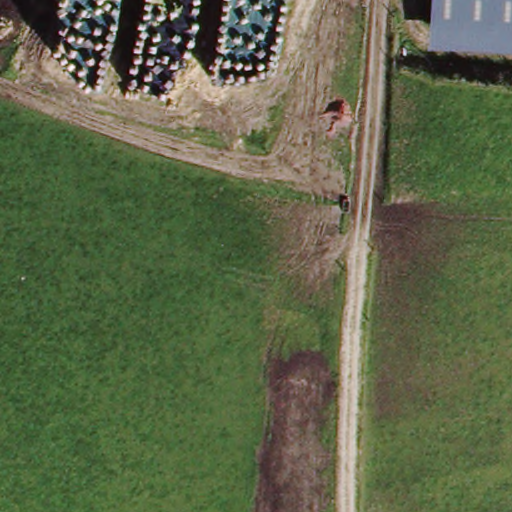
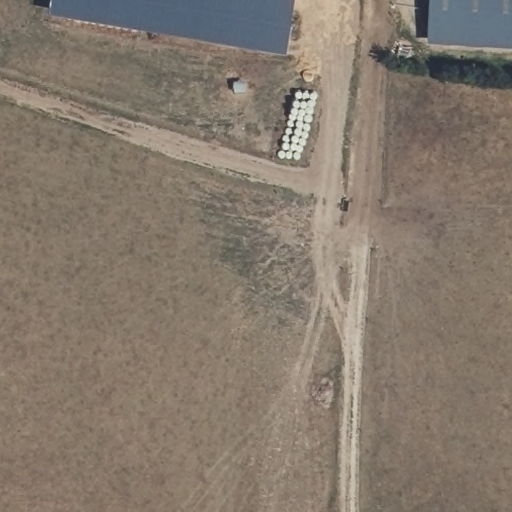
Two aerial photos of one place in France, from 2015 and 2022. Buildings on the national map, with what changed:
new [(287,57),(48,15),(51,0),(296,0),(287,57)]
unchanged [(512,48),(431,44),(433,0),(512,0),(512,48)]

